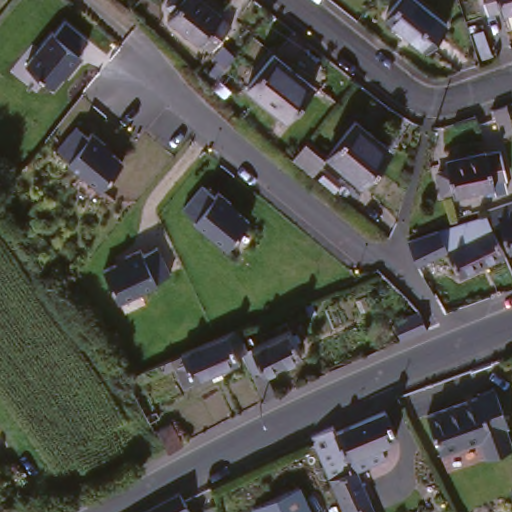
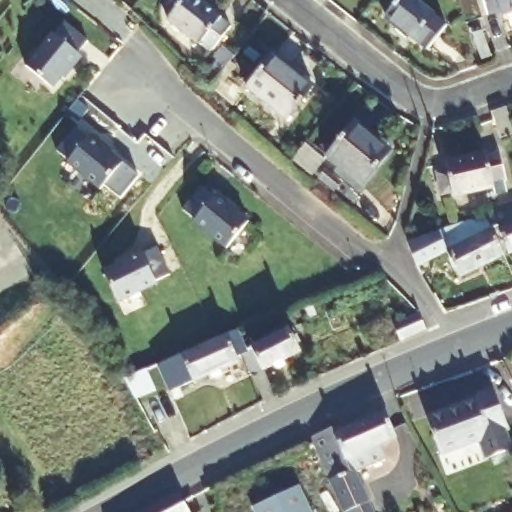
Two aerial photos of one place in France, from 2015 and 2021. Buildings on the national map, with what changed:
unchanged [(0,0),(4,0),(3,2),(0,0)]
unchanged [(216,48),(206,39),(203,42),(171,16),(174,11),(167,6),(172,0),(208,0),(226,15),(224,16),(233,25),(216,48)]
unchanged [(388,16),(401,0),(417,0),(449,26),(429,50),(388,16)]
unchanged [(507,18),(502,20),(501,17),(487,21),(481,0),(512,0),(512,32),(512,33),(507,18)]
unchanged [(91,40),(81,52),(84,56),(73,69),(71,68),(55,87),(27,64),(54,31),(57,33),(67,21),(91,40)]
unchanged [(249,83),(276,50),(313,81),(288,114),(249,83)]
unchanged [(493,106),(507,101),(510,109),(512,115),(512,127),(501,131),(493,106)]
unchanged [(376,137),(373,140),(389,154),(364,184),(328,156),(357,122),(376,137)]
unchanged [(77,129),(89,139),(92,135),(106,146),(104,148),(123,165),(99,192),(67,164),(69,161),(58,151),(77,129)]
unchanged [(311,176),(299,166),(292,160),(309,139),(328,156),(311,176)]
unchanged [(504,181),(507,191),(499,193),(497,186),(455,198),(454,193),(444,196),(438,175),(448,172),(447,163),(487,151),(489,156),(499,154),(507,180),(504,181)]
unchanged [(199,189),(212,199),(214,195),(229,206),(227,208),(247,224),(224,252),(191,225),(193,222),(180,212),(199,189)]
unchanged [(496,229),(488,232),(483,220),(481,215),(512,205),(512,252),(506,255),(496,229)]
unchanged [(479,275),(476,269),(456,279),(444,254),(417,265),(408,243),(483,220),(488,232),(500,257),(484,265),(487,272),(479,275)]
unchanged [(95,276),(109,269),(108,265),(124,257),(124,259),(147,248),(163,281),(124,299),(123,296),(108,303),(95,276)]
unchanged [(403,334),(396,317),(421,306),(429,323),(403,334)]
unchanged [(273,335),(269,327),(284,320),(299,350),(262,370),(273,391),(263,397),(241,351),(244,350),(273,335)]
unchanged [(241,351),(234,354),(238,361),(219,369),(222,374),(212,379),(209,374),(183,386),(173,365),(161,371),(158,363),(233,329),(237,337),(244,350),(241,351)]
unchanged [(137,376),(131,379),(128,374),(134,371),(137,376)]
unchanged [(512,449),(488,460),(479,441),(444,457),(429,420),(478,400),(477,398),(495,390),(511,427),(504,430),(512,447),(512,449)]
unchanged [(159,403),(163,411),(153,417),(148,409),(159,403)]
unchanged [(335,433),(383,412),(394,435),(383,440),(390,454),(354,471),(370,503),(369,504),(373,512),(343,512),(343,511),(328,479),(309,436),(324,429),(331,426),(335,433)]
unchanged [(175,416),(188,440),(174,447),(161,424),(175,416)]
unchanged [(253,511),(297,490),(308,512),(253,512),(253,511)]
unchanged [(182,492),(187,500),(194,512),(144,512),(182,492)]

